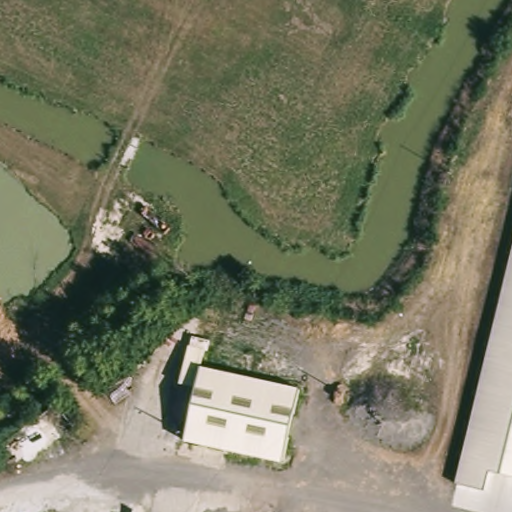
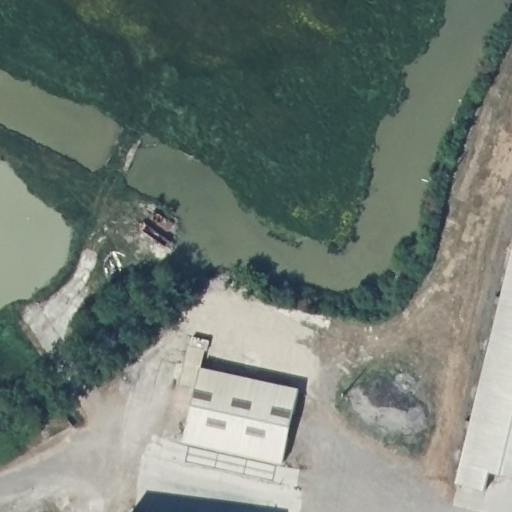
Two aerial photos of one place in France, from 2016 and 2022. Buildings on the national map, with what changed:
unchanged [(486,491),(454,482),(512,244),(512,477),(491,473),(486,491)]
unchanged [(299,385),(283,462),(184,442),(201,365),(299,385)]

